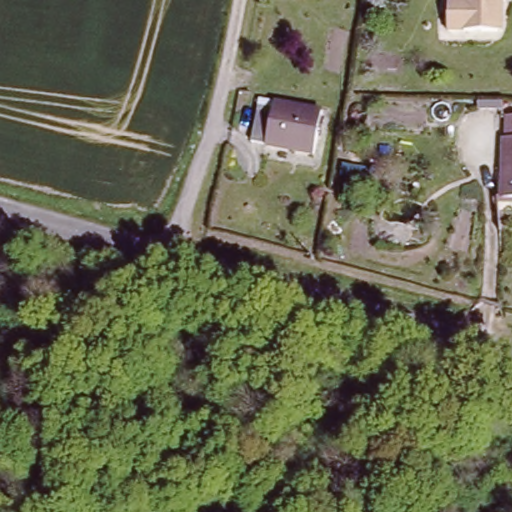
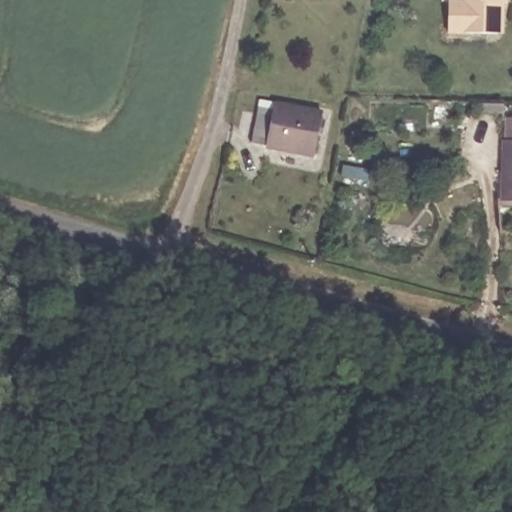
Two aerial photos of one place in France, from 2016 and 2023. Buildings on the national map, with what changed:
unchanged [(504,3),(503,35),(448,34),(447,0),(463,0),(507,0),(507,3),(504,3)]
unchanged [(317,150),(257,150),(257,121),(276,121),(276,107),(318,107),(317,150)]
unchanged [(500,201),(502,122),(512,122),(512,202),(500,201)]

